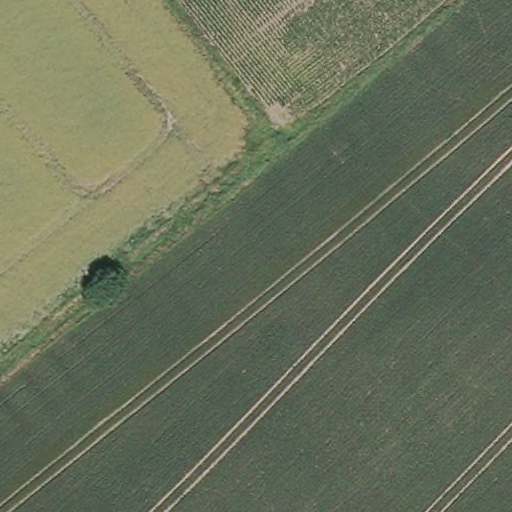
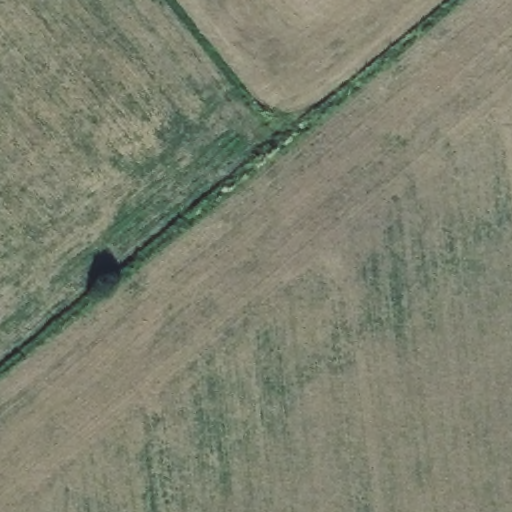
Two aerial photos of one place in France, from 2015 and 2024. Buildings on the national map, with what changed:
[]

